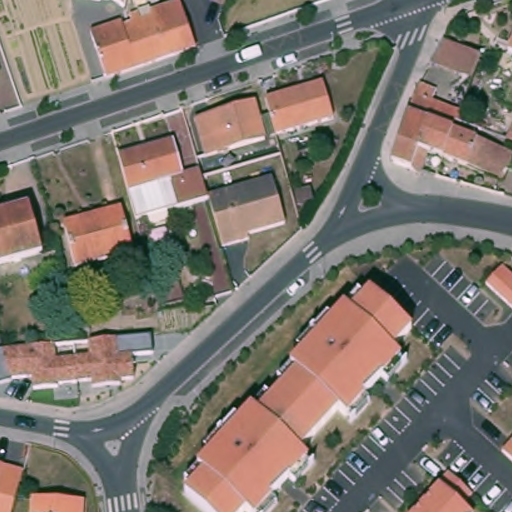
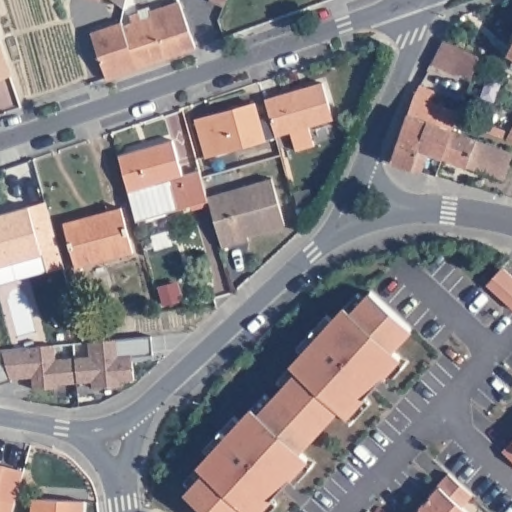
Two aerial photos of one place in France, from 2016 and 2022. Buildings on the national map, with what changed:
unchanged [(112,0),(121,0),(118,4),(112,0)]
unchanged [(224,0),(222,4),(212,0),(224,0)]
unchanged [(120,27),(129,23),(128,16),(136,13),(136,9),(149,6),(150,10),(179,1),(195,48),(135,68),(120,27)]
unchanged [(105,79),(89,31),(119,22),(120,27),(135,68),(105,79)]
unchanged [(480,58),(470,83),(430,65),(444,41),(480,58)]
unchanged [(506,55),(512,43),(512,58),(506,55)]
unchanged [(324,86),(333,119),(276,137),(270,119),(266,103),(324,86)]
unchanged [(436,159),(422,154),(417,167),(408,164),(406,169),(385,164),(414,86),(429,91),(428,95),(438,99),(435,105),(453,113),(450,121),(446,131),(508,155),(497,181),(436,159)]
unchanged [(207,153),(197,117),(255,101),(259,119),(264,135),(262,136),(207,153)]
unchanged [(512,130),(512,143),(507,140),(512,130)]
unchanged [(199,188),(202,198),(203,200),(130,220),(114,157),(168,143),(178,175),(194,171),(195,174),(199,188)]
unchanged [(277,175),(289,223),(225,245),(209,192),(277,175)]
unchanged [(294,194),(309,190),(312,202),(297,205),(294,194)]
unchanged [(38,249),(0,260),(0,210),(24,203),(38,249)]
unchanged [(133,253),(77,269),(66,232),(64,224),(106,213),(121,209),(133,253)]
unchanged [(501,267),(512,277),(512,308),(486,284),(501,267)]
unchanged [(160,290),(178,285),(182,300),(164,304),(160,290)]
unchanged [(203,469),(197,463),(250,403),(257,409),(295,367),(289,361),(343,302),(350,308),(369,287),(410,324),(391,345),(399,353),(345,412),(337,404),(298,447),(306,454),(253,512),(250,512),(244,506),(238,512),(208,512),(184,489),(203,469)]
unchanged [(87,323),(89,333),(82,336),(79,325),(87,323)]
unchanged [(54,361),(89,357),(88,343),(151,335),(154,354),(133,356),(134,379),(120,381),(119,387),(91,389),(91,383),(33,388),(31,378),(6,374),(0,375),(0,351),(53,346),(54,361)]
unchanged [(512,441),(512,452),(507,447),(512,441)]
unchanged [(0,473),(0,463),(3,464),(0,473)]
unchanged [(459,483),(457,481),(468,469),(492,491),(481,503),(491,512),(432,512),(459,483)]
unchanged [(11,512),(0,512),(0,493),(15,497),(11,512)]
unchanged [(32,499),(84,503),(83,512),(31,512),(32,499)]

